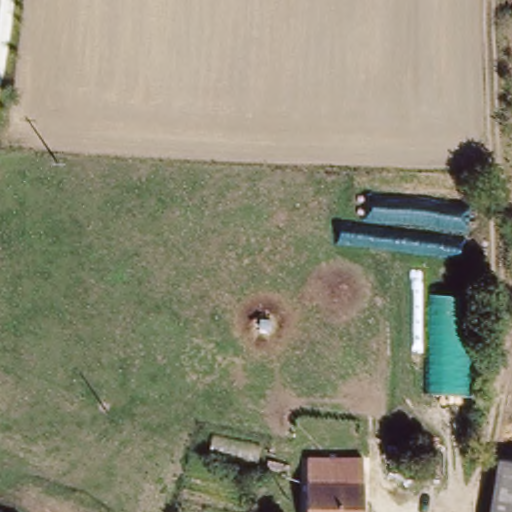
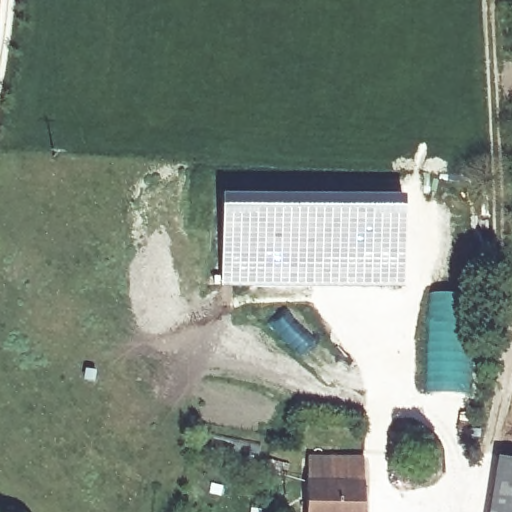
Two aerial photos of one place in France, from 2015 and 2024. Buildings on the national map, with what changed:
new [(225,192),(406,196),(404,286),(222,282),(225,192)]
unchanged [(432,292),(476,294),(472,394),(430,392),(432,292)]
unchanged [(308,484),(331,486),(331,460),(370,461),(367,486),(367,512),(308,512),(308,484)]
unchanged [(511,465),(512,465),(512,512),(505,512),(511,465)]

